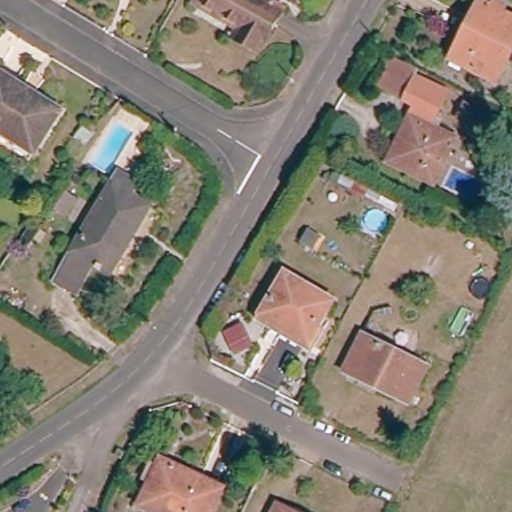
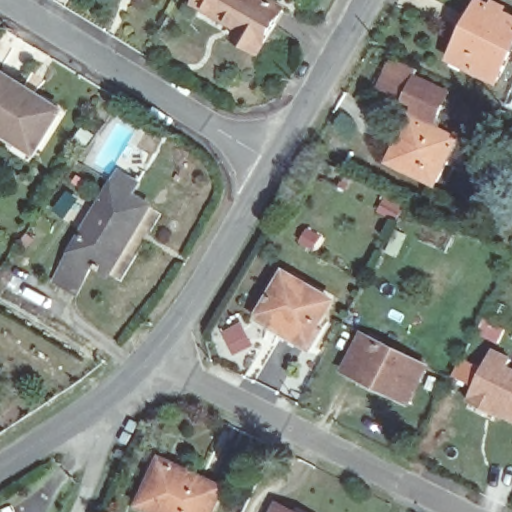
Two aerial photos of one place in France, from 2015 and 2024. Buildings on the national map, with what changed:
unchanged [(281,9),(257,50),(233,36),(237,28),(194,2),(195,0),(267,0),(281,9)]
unchanged [(479,1),(512,17),(512,47),(496,80),(451,57),(479,1)]
unchanged [(431,102),(437,106),(426,128),(447,139),(426,181),(386,161),(407,118),(409,119),(414,108),(400,101),(375,88),(391,58),(415,70),(411,78),(437,91),(431,102)]
unchanged [(29,158),(0,140),(0,80),(55,114),(29,158)]
unchanged [(491,117),(485,130),(459,118),(466,104),(491,117)]
unchanged [(130,187),(149,199),(107,269),(90,259),(74,285),(55,273),(102,195),(111,180),(118,168),(126,172),(136,177),(130,187)]
unchanged [(81,178),(77,185),(71,181),(74,174),(81,178)]
unchanged [(331,296),(318,320),(324,324),(312,346),(259,316),(286,270),(331,296)]
unchanged [(427,367),(410,401),(346,371),(363,335),(427,367)]
new [(493,351),(510,360),(507,367),(512,370),(512,419),(498,413),(496,416),(469,403),(493,351)]
unchanged [(162,512),(140,502),(150,483),(160,458),(171,463),(222,487),(210,512),(162,512)]
unchanged [(275,512),(277,507),(288,512),(275,512)]

